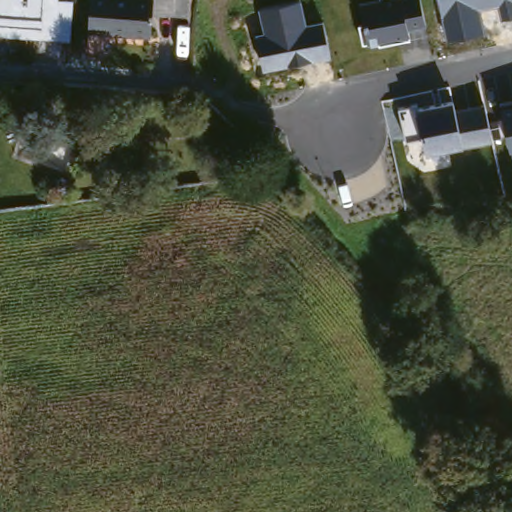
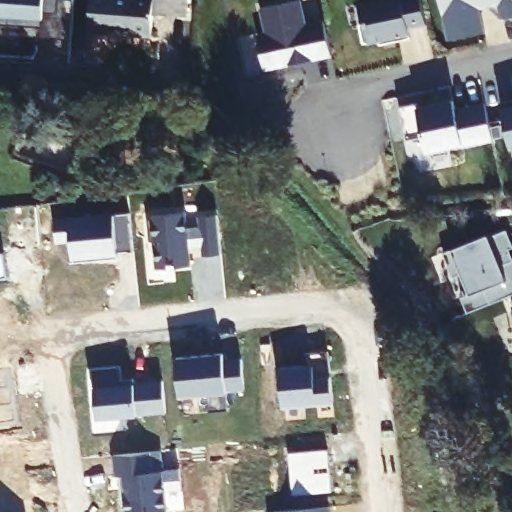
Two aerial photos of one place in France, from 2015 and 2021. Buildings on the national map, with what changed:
unchanged [(72,38),(0,34),(0,0),(74,0),(72,38)]
unchanged [(172,9),(153,8),(151,32),(88,27),(90,0),(173,0),(172,9)]
unchanged [(255,34),(264,32),(260,7),(297,0),(302,0),(306,23),(323,20),(332,55),(263,71),(255,34)]
unchanged [(358,22),(364,20),(360,1),(365,0),(422,0),(426,23),(409,27),(411,37),(379,45),(378,40),(362,44),(358,22)]
unchanged [(512,16),(502,18),(498,3),(480,9),(485,34),(449,41),(441,0),(512,0),(512,16)]
unchanged [(399,105),(415,102),(416,107),(453,99),(454,107),(483,102),(491,139),(463,145),(426,152),(422,135),(405,139),(399,105)]
unchanged [(512,105),(512,147),(511,147),(502,107),(512,105)]
new [(152,217),(152,215),(185,211),(187,228),(200,227),(199,216),(217,215),(221,253),(203,255),(202,246),(188,247),(190,265),(157,268),(154,240),(149,241),(147,217),(152,217)]
new [(118,252),(119,257),(73,262),(71,240),(56,241),(54,220),(130,212),(132,225),(134,250),(118,252)]
new [(512,246),(509,247),(512,254),(512,291),(466,310),(460,296),(468,292),(460,272),(452,276),(443,253),(451,248),(487,232),(506,227),(512,239),(512,246)]
new [(305,362),(304,355),(327,352),(332,403),(282,408),(277,365),(305,362)]
new [(221,355),(222,362),(239,360),(242,391),(225,392),(227,412),(207,413),(205,395),(177,397),(174,360),(221,355)]
new [(121,380),(133,379),(134,384),(162,382),(165,412),(96,418),(91,369),(119,367),(121,380)]
new [(120,507),(118,487),(123,487),(122,474),(114,475),(112,453),(159,450),(161,469),(178,467),(180,488),(163,490),(165,511),(149,512),(126,512),(125,507),(120,507)]
new [(327,512),(268,512),(327,507),(327,512)]

